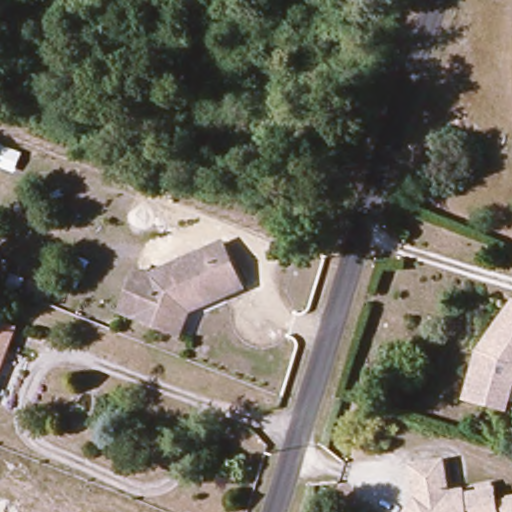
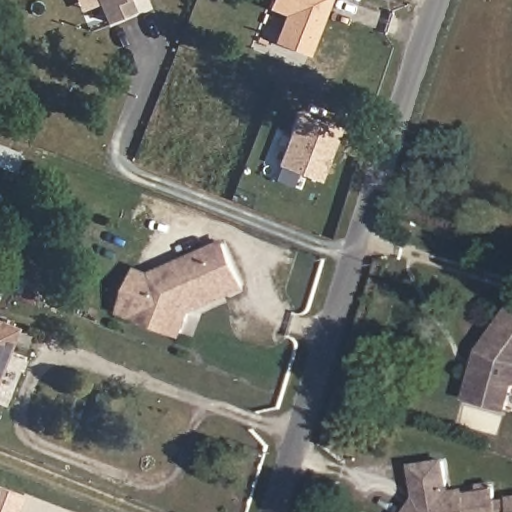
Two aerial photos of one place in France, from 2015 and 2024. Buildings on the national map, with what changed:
new [(135,12),(106,23),(97,0),(131,0),(135,12)]
new [(270,8),(273,0),(332,0),(310,55),(275,41),(285,15),(270,8)]
new [(337,140),(321,182),(299,174),(295,186),(276,181),(281,167),(277,165),(293,123),(337,140)]
new [(15,175),(0,169),(0,145),(21,154),(15,175)]
unchanged [(136,270),(150,275),(224,247),(241,292),(190,313),(179,339),(132,320),(119,314),(136,270)]
unchanged [(508,384),(503,406),(463,392),(478,348),(512,302),(512,383),(508,384)]
unchanged [(0,323),(17,330),(0,370),(0,323)]
unchanged [(415,467),(446,462),(451,495),(466,490),(467,496),(481,493),(480,489),(495,485),(496,490),(499,502),(501,512),(412,512),(420,501),(415,467)]
new [(12,512),(0,512),(0,492),(17,500),(12,512)]
unchanged [(501,512),(499,502),(512,500),(512,512),(501,512)]

